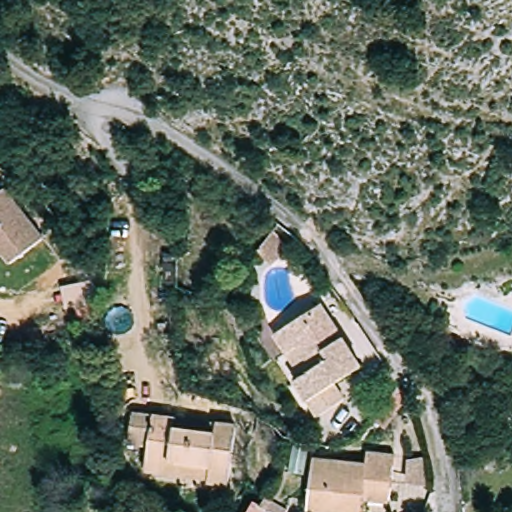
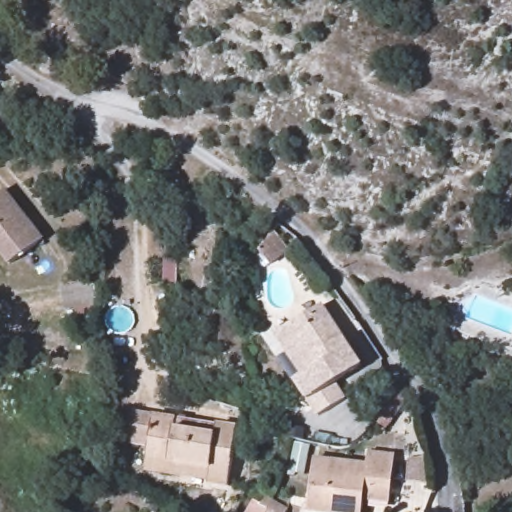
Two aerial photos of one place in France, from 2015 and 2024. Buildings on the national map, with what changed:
unchanged [(46,240),(15,266),(5,254),(0,258),(0,198),(8,192),(46,240)]
unchanged [(362,372),(337,386),(346,406),(318,422),(295,385),(305,379),(282,335),(327,309),(362,372)]
unchanged [(227,482),(205,481),(206,464),(143,460),(145,447),(127,446),(129,416),(167,419),(167,428),(212,430),(212,418),(232,419),(227,482)]
unchanged [(360,462),(360,449),(392,449),(394,497),(367,497),(367,507),(362,506),(362,512),(312,512),(310,462),(360,462)]
unchanged [(258,502),(282,512),(254,512),(258,502)]

